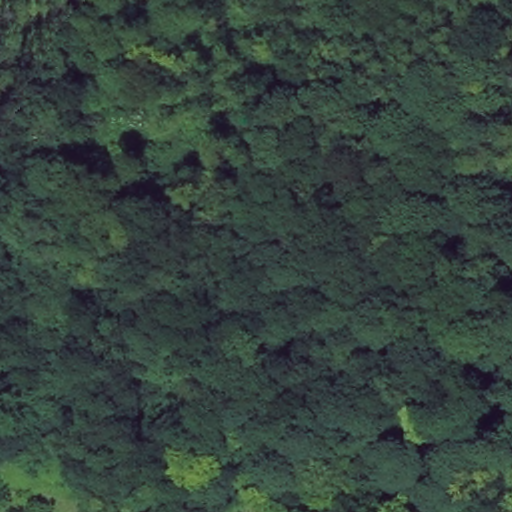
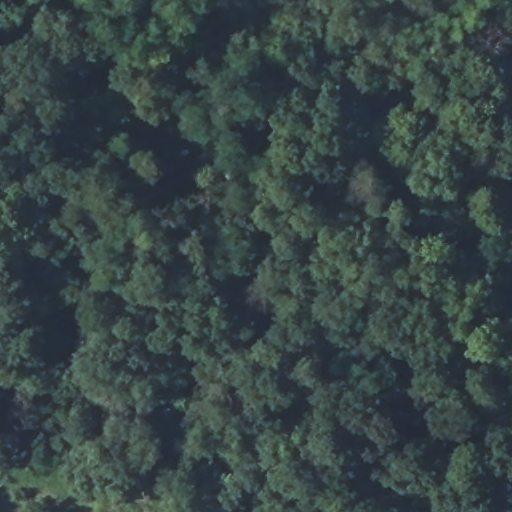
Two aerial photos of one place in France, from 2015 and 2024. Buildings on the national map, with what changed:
[]

